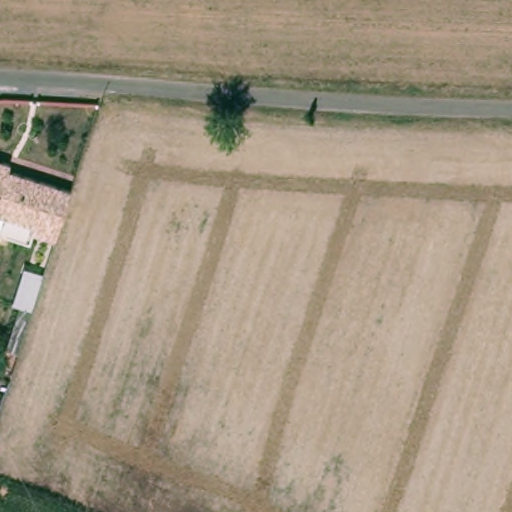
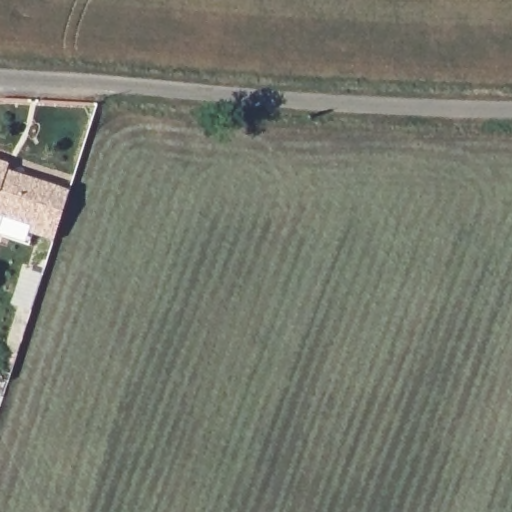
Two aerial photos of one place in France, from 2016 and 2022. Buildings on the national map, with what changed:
unchanged [(0,232),(0,158),(15,163),(13,168),(74,187),(59,232),(8,215),(3,233),(0,232)]

